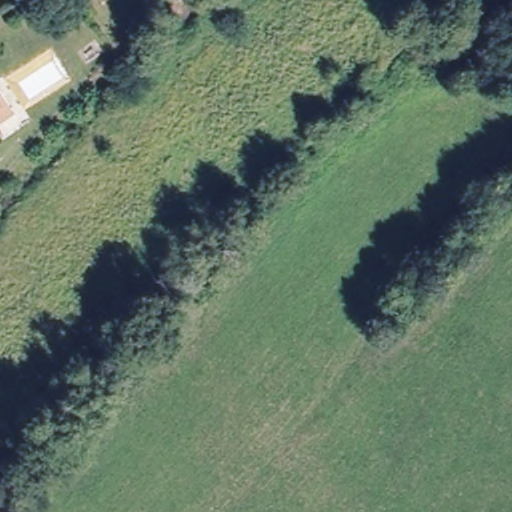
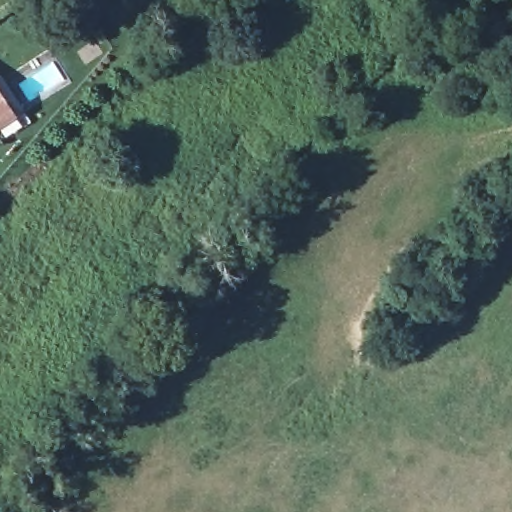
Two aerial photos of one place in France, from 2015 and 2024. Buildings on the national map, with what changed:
unchanged [(9,111),(0,116),(0,96),(9,111)]

